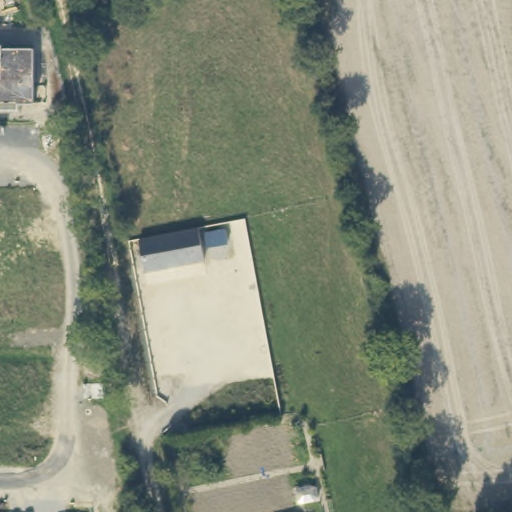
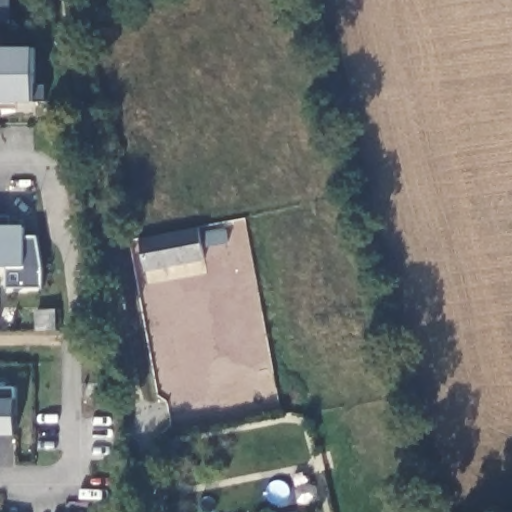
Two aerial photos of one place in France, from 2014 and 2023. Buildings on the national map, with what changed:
new [(0,23),(0,0),(11,0),(11,23),(0,23)]
unchanged [(5,48),(35,48),(35,72),(46,71),(46,102),(35,103),(0,102),(0,43),(5,43),(5,48)]
new [(11,225),(26,225),(25,267),(24,289),(4,288),(4,268),(0,268),(0,215),(11,215),(11,225)]
unchanged [(199,225),(205,258),(147,270),(140,238),(199,225)]
unchanged [(206,233),(226,228),(229,240),(209,244),(206,233)]
new [(15,399),(15,436),(0,436),(0,389),(15,389),(15,399)]

